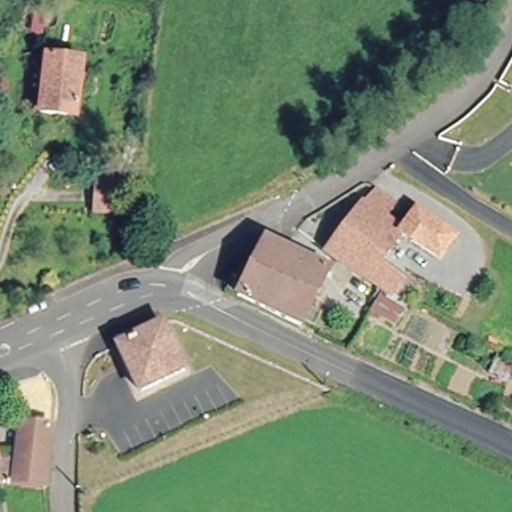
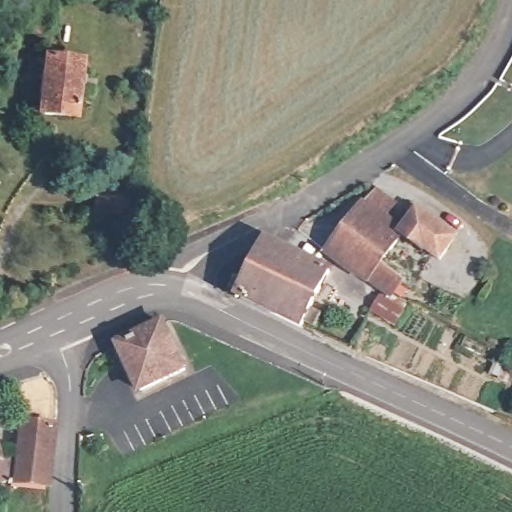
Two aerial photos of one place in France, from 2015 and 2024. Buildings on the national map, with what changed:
unchanged [(73,119),(40,115),(45,60),(79,63),(73,119)]
unchanged [(381,292),(391,277),(396,281),(400,272),(377,257),(342,233),(389,172),(407,185),(398,198),(417,211),(431,192),(471,219),(455,243),(438,232),(423,253),(407,276),(421,283),(409,307),(381,292)]
unchanged [(91,182),(118,181),(119,212),(92,213),(91,182)]
unchanged [(238,301),(263,245),(322,272),(311,301),(296,329),(238,301)]
unchanged [(138,394),(138,393),(120,345),(166,321),(187,372),(138,394)]
unchanged [(49,424),(48,476),(16,473),(18,454),(20,422),(49,424)]
unchanged [(18,454),(16,473),(0,472),(0,453),(18,454)]

